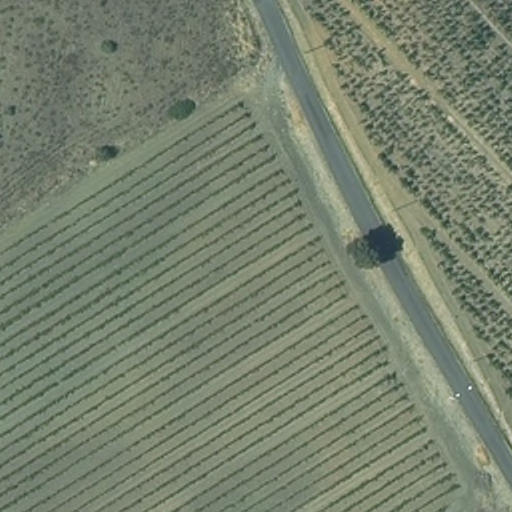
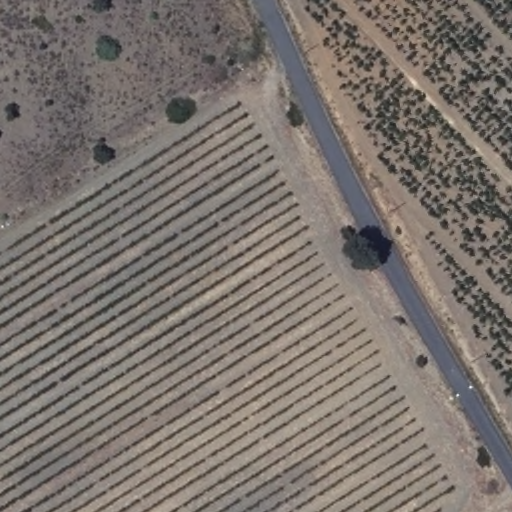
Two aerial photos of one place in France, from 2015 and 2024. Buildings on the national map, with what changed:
[]

